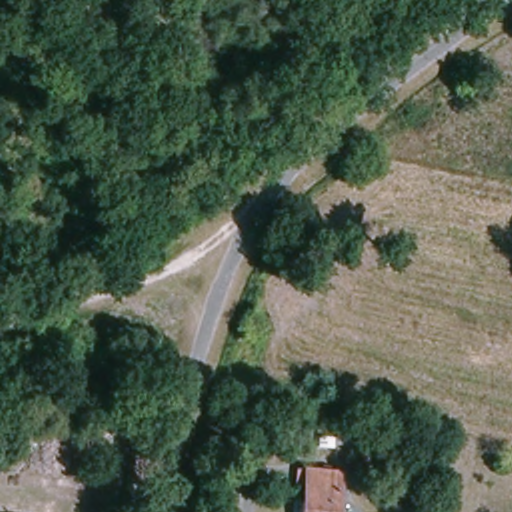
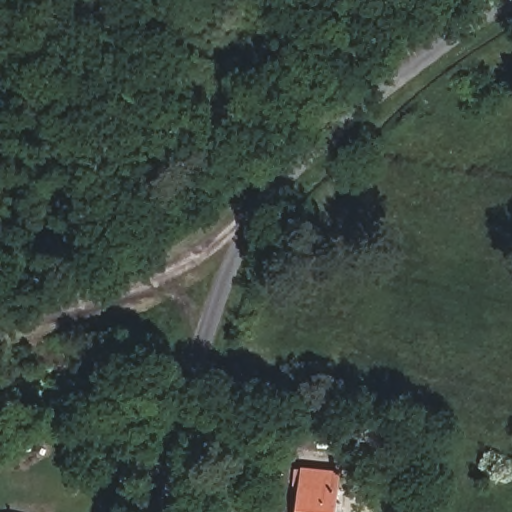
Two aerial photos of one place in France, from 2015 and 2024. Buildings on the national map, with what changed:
unchanged [(337,512),(307,512),(309,493),(290,491),(293,469),(340,472),(337,512)]

